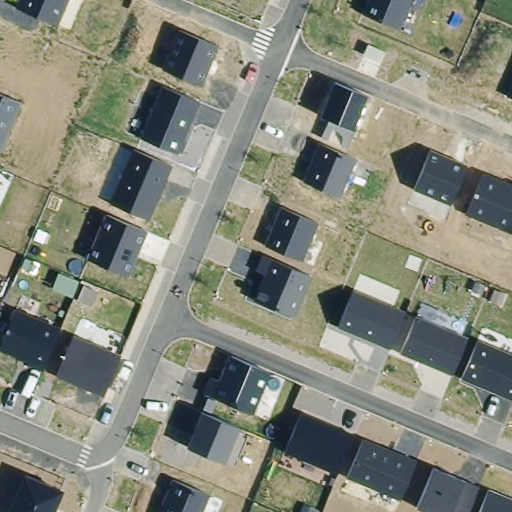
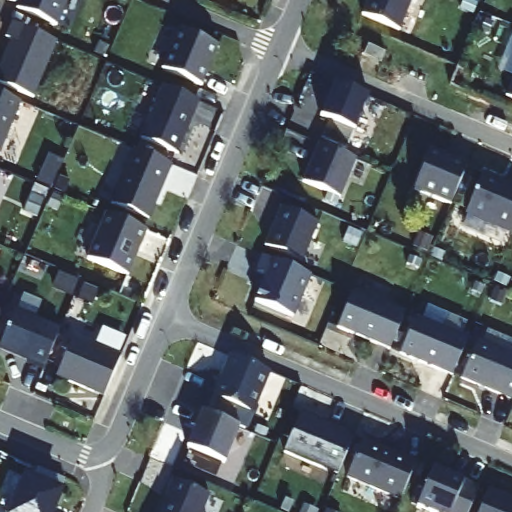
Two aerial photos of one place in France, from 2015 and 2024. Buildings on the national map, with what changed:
unchanged [(68,0),(58,25),(18,10),(22,0),(68,0)]
unchanged [(412,0),(401,29),(363,13),(368,0),(412,0)]
new [(0,65),(11,39),(5,36),(11,22),(56,42),(34,97),(0,83),(0,65)]
unchanged [(178,29),(217,45),(201,87),(163,69),(178,29)]
unchanged [(356,129),(346,149),(321,137),(327,120),(319,116),(332,81),(369,96),(356,129)]
unchanged [(512,82),(512,98),(507,95),(512,82)]
unchanged [(161,87),(198,102),(178,154),(141,137),(161,87)]
unchanged [(0,152),(0,94),(19,102),(0,152)]
unchanged [(301,180),(317,143),(354,159),(339,197),(301,180)]
unchanged [(131,150),(171,166),(151,220),(109,202),(131,150)]
unchanged [(466,164),(451,204),(414,189),(430,151),(466,164)]
unchanged [(512,232),(467,215),(483,173),(512,183),(512,231),(512,232)]
unchanged [(319,224),(303,261),(266,245),(281,209),(319,224)]
unchanged [(105,216),(147,231),(131,276),(88,259),(105,216)]
unchanged [(271,261),(311,276),(295,315),(256,299),(271,261)]
unchanged [(408,310),(391,348),(334,324),(349,288),(408,310)]
unchanged [(0,347),(16,309),(62,329),(44,372),(0,351),(0,347)]
unchanged [(454,375),(400,354),(414,318),(469,337),(454,375)]
unchanged [(56,376),(73,337),(121,355),(103,397),(56,376)]
unchanged [(463,377),(477,342),(512,355),(512,397),(463,377)]
unchanged [(269,373),(253,413),(205,394),(202,393),(209,375),(219,379),(228,353),(269,373)]
unchanged [(203,413),(238,429),(226,463),(188,448),(203,413)]
unchanged [(298,415),(351,436),(336,473),(284,452),(298,415)]
unchanged [(362,440),(417,461),(401,500),(346,478),(362,440)]
unchanged [(434,469),(478,485),(467,512),(425,512),(418,509),(434,469)]
unchanged [(23,477),(62,491),(54,512),(9,512),(23,477)]
unchanged [(173,480),(209,495),(202,512),(160,512),(173,480)]
unchanged [(489,490),(512,499),(512,512),(479,512),(489,490)]

